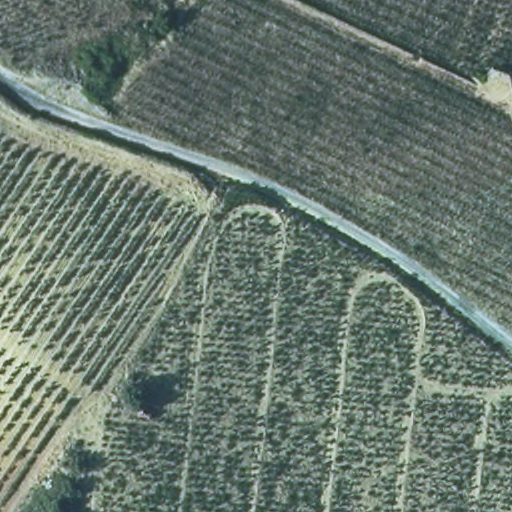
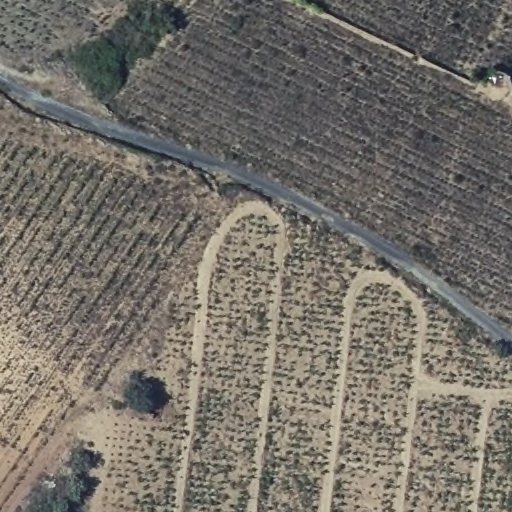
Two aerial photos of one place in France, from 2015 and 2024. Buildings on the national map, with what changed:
unchanged [(512,72),(512,78),(506,90),(483,77),(496,62),(512,72)]

